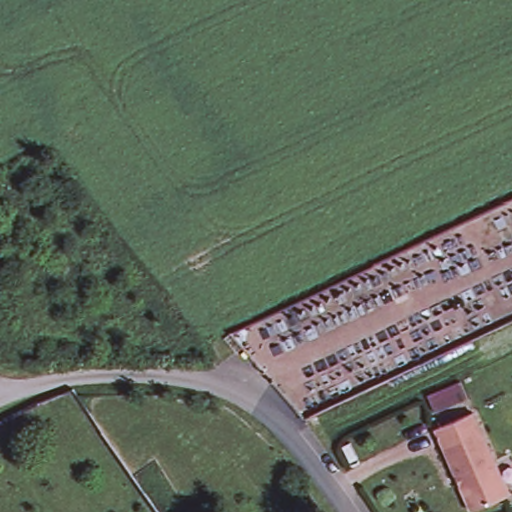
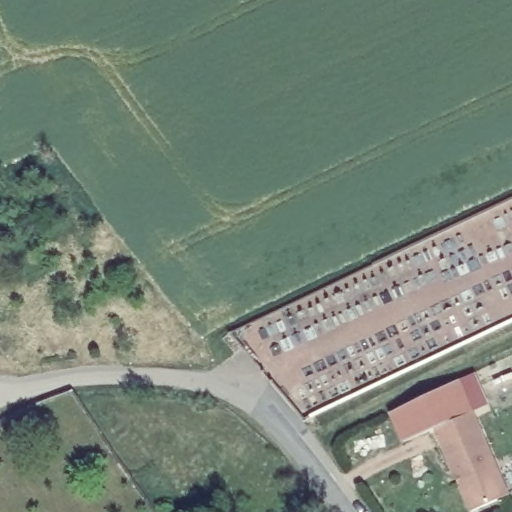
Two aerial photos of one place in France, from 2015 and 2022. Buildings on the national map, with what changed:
new [(389,414),(474,376),(488,407),(469,416),(433,432),(403,444),(389,414)]
unchanged [(476,512),(470,512),(461,493),(433,432),(469,416),(498,477),(508,498),(476,512)]

